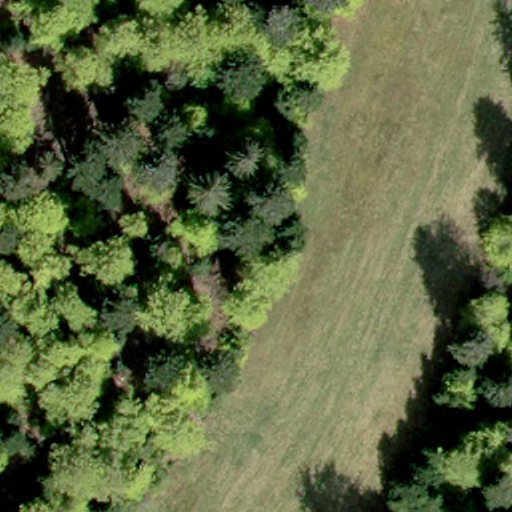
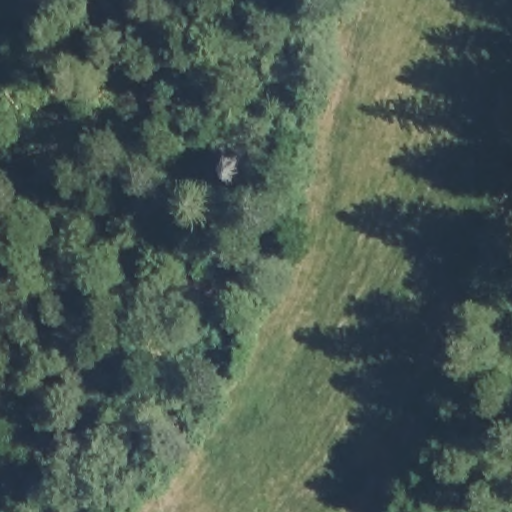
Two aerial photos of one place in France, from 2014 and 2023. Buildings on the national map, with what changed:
[]

